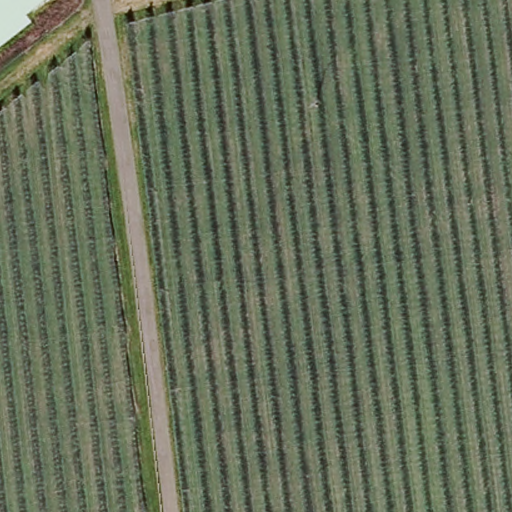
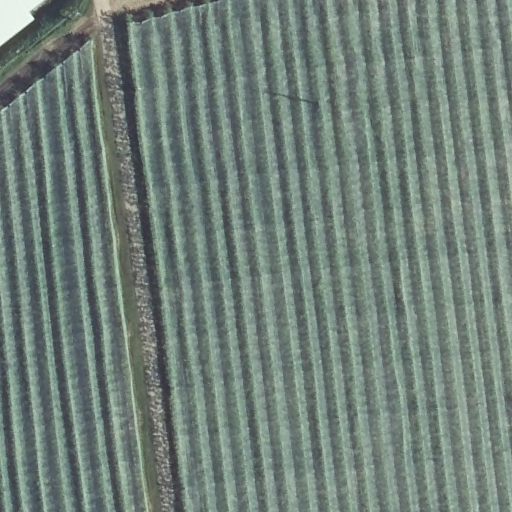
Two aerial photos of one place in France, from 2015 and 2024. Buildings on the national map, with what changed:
unchanged [(0,50),(0,0),(53,0),(57,7),(0,50)]

